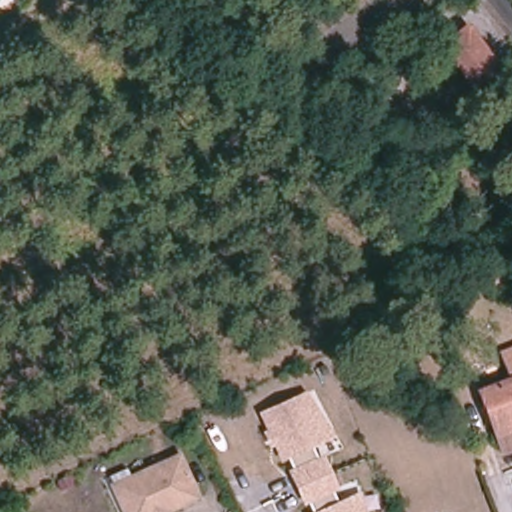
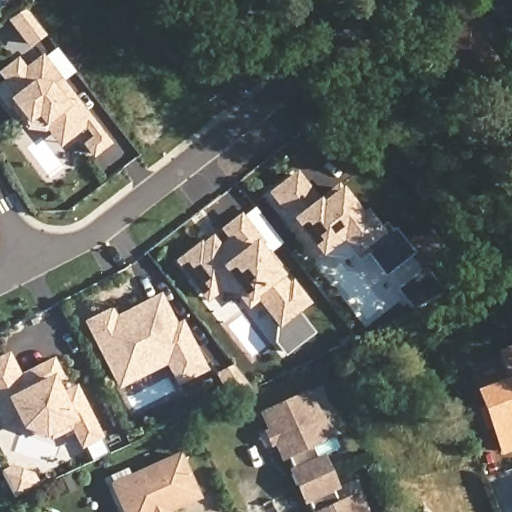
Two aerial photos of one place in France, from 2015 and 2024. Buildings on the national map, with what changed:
new [(44,33),(30,44),(10,19),(26,10),(44,33)]
unchanged [(469,80),(444,47),(465,31),(490,64),(469,80)]
new [(59,124),(50,130),(38,114),(29,120),(14,102),(9,106),(0,95),(0,88),(8,81),(3,74),(17,62),(25,72),(42,59),(63,87),(72,99),(90,121),(70,137),(59,124)]
new [(94,154),(87,145),(100,135),(107,144),(94,154)]
new [(338,184),(343,190),(361,214),(366,210),(380,228),(386,224),(391,231),(395,229),(414,255),(385,276),(367,254),(358,261),(354,257),(351,254),(347,258),(325,254),(322,257),(316,261),(286,221),(288,220),(268,194),(297,170),(318,199),(338,184)]
new [(263,243),(260,244),(283,275),(289,282),(293,280),(311,305),(300,313),(315,333),(285,357),(274,343),(276,327),(258,302),(248,310),(237,295),(220,293),(206,303),(175,262),(201,242),(202,244),(213,235),(219,244),(227,240),(220,230),(241,213),(263,243)]
unchanged [(417,306),(490,270),(497,281),(467,298),(423,320),(417,306)]
new [(180,381),(166,354),(134,370),(129,360),(113,368),(90,324),(110,313),(117,326),(115,322),(126,316),(159,299),(175,330),(181,326),(203,369),(180,381)]
new [(71,431),(54,440),(46,440),(22,431),(20,427),(17,430),(12,421),(1,426),(0,425),(0,357),(10,352),(20,374),(54,357),(63,378),(56,380),(61,390),(76,385),(103,438),(81,450),(71,431)]
unchanged [(503,355),(512,352),(512,378),(503,355)]
new [(252,390),(232,398),(221,375),(235,368),(252,390)]
unchanged [(503,453),(479,393),(512,380),(512,450),(503,453)]
unchanged [(367,512),(313,512),(308,503),(303,505),(287,472),(293,468),(288,458),(281,461),(274,445),(268,448),(261,431),(267,429),(259,411),(305,392),(337,436),(313,446),(318,458),(325,455),(340,488),(332,491),(338,502),(361,492),(367,512)]
unchanged [(114,490),(111,486),(107,476),(126,468),(130,477),(147,470),(179,455),(198,498),(167,512),(124,512),(114,490)]
new [(33,486),(12,496),(8,488),(0,473),(9,470),(25,475),(29,475),(33,486)]

